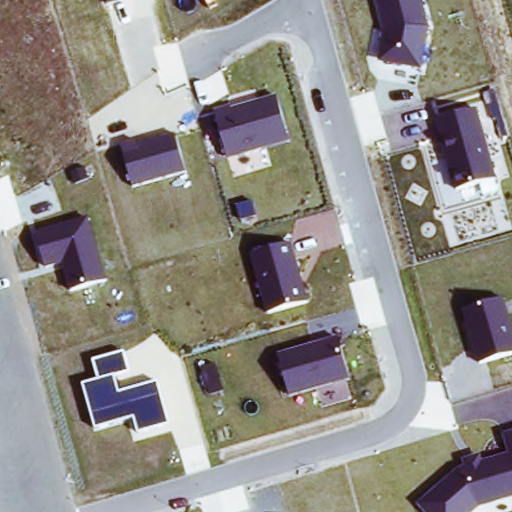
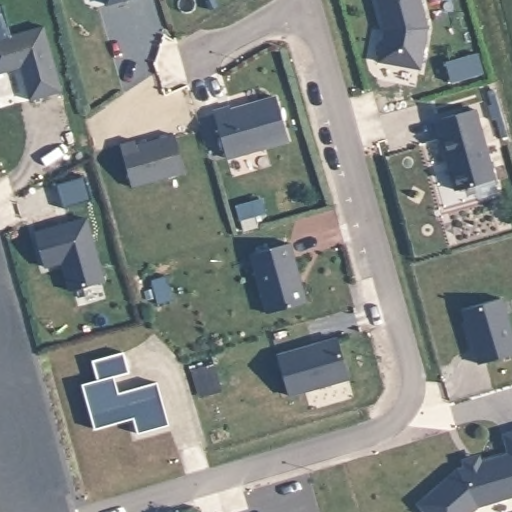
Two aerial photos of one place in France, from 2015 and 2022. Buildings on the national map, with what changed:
unchanged [(107,6),(106,0),(126,0),(107,6)]
unchanged [(384,30),(376,0),(422,0),(430,28),(424,70),(379,64),(384,30)]
new [(62,94),(30,103),(20,68),(14,70),(15,72),(0,76),(0,42),(44,29),(62,94)]
unchanged [(213,115),(275,98),(289,143),(227,160),(213,115)]
unchanged [(435,119),(477,109),(497,181),(455,193),(435,119)]
unchanged [(130,187),(121,146),(139,143),(140,145),(175,136),(184,175),(130,187)]
unchanged [(34,232),(88,218),(105,282),(70,292),(62,266),(43,270),(34,232)]
unchanged [(252,254),(292,244),(307,304),(266,314),(252,254)]
unchanged [(461,308),(508,297),(512,316),(512,357),(477,366),(461,308)]
unchanged [(339,341),(350,381),(287,400),(275,356),(339,341)]
unchanged [(131,371),(115,377),(119,392),(159,382),(170,424),(140,432),(136,418),(95,428),(84,384),(100,379),(94,360),(125,351),(131,371)]
unchanged [(464,468),(462,461),(482,456),(483,462),(508,454),(504,435),(512,433),(512,502),(482,510),(480,512),(422,512),(417,506),(458,470),(464,468)]

